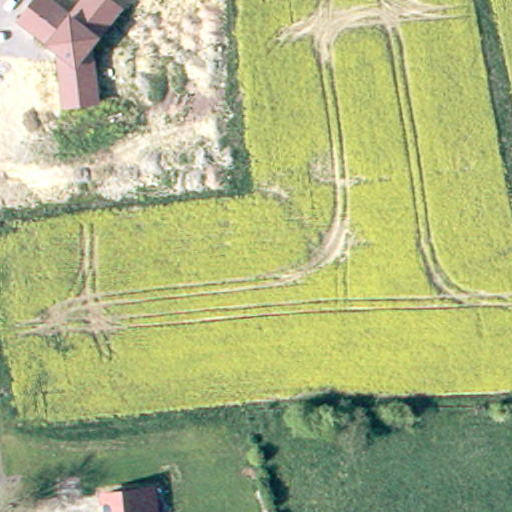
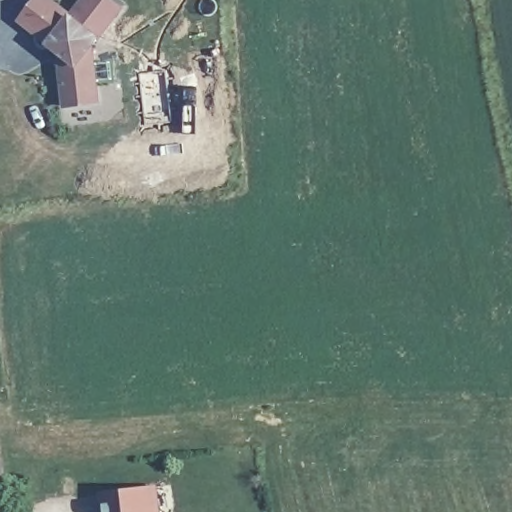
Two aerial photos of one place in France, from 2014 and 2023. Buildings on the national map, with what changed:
unchanged [(103,37),(94,49),(100,103),(63,109),(57,51),(46,44),(18,21),(34,0),(55,0),(70,12),(80,0),(113,0),(124,9),(103,37)]
unchanged [(106,498),(106,496),(156,490),(156,492),(159,512),(108,512),(106,498)]

